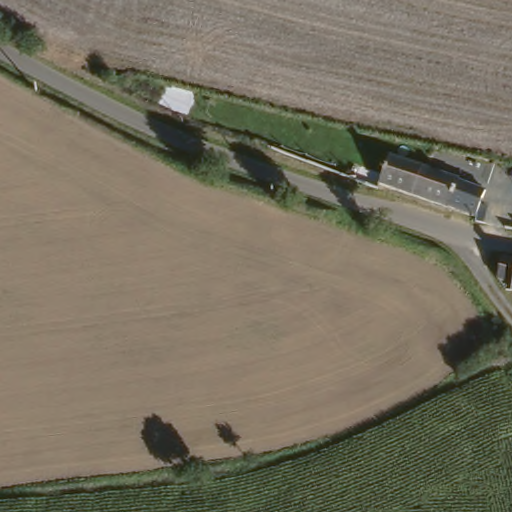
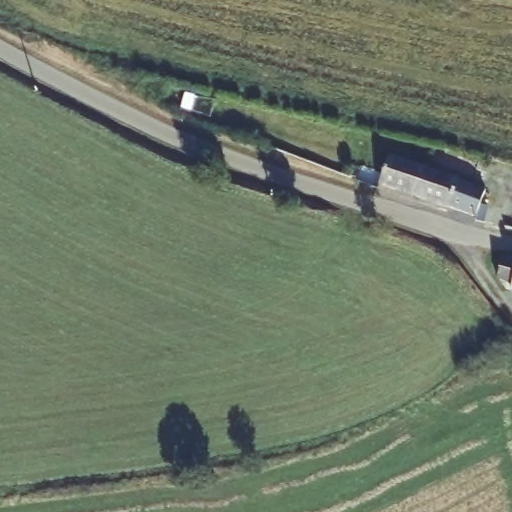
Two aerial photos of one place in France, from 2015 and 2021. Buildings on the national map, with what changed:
unchanged [(471,223),(460,217),(379,172),(392,148),(482,197),(476,212),(471,223)]
unchanged [(482,229),(475,225),(476,212),(484,213),(482,229)]
unchanged [(500,278),(505,259),(512,261),(512,283),(500,278)]
unchanged [(511,293),(512,290),(512,293),(511,293)]

